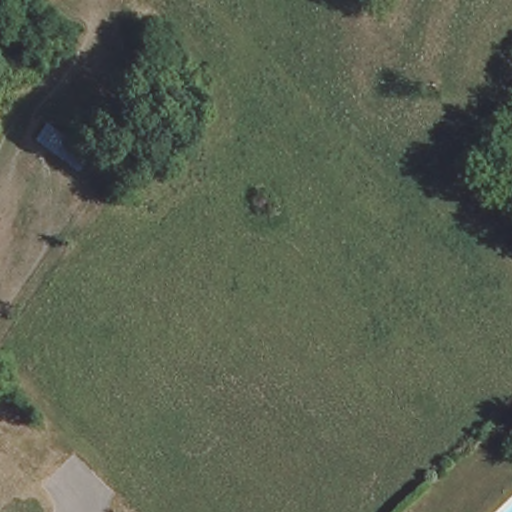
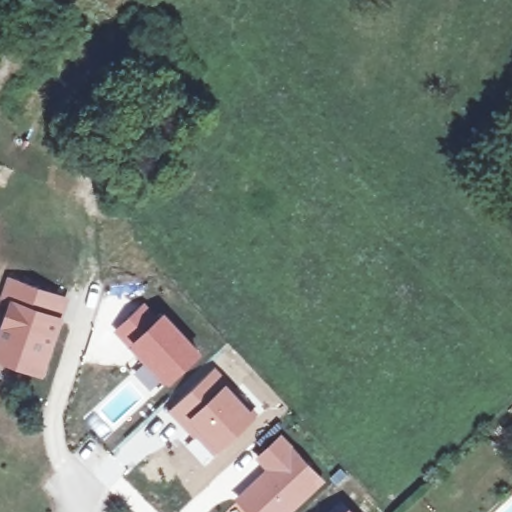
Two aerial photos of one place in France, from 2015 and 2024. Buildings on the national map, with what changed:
unchanged [(75,139),(58,161),(31,141),(49,118),(75,139)]
new [(7,275),(71,297),(65,316),(7,298),(6,301),(0,300),(0,298),(7,275)]
new [(6,301),(7,298),(65,316),(45,379),(0,363),(0,320),(6,301)]
new [(201,350),(166,387),(162,382),(151,392),(133,372),(143,363),(128,346),(114,330),(145,301),(159,315),(164,310),(201,350)]
new [(214,366),(259,415),(215,456),(168,410),(214,366)]
new [(264,468),(255,457),(282,432),(326,480),(292,512),(243,512),(234,501),(264,468)]
new [(348,505),(354,512),(339,512),(348,505)]

